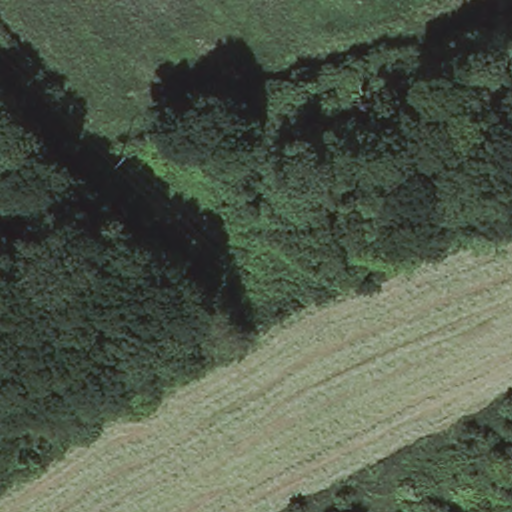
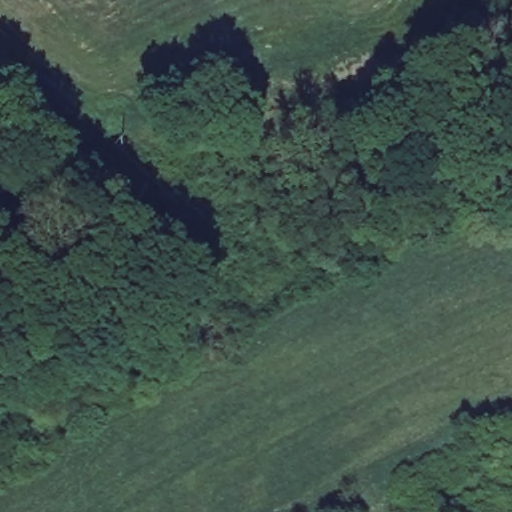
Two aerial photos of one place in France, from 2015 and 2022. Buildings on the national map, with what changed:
[]

